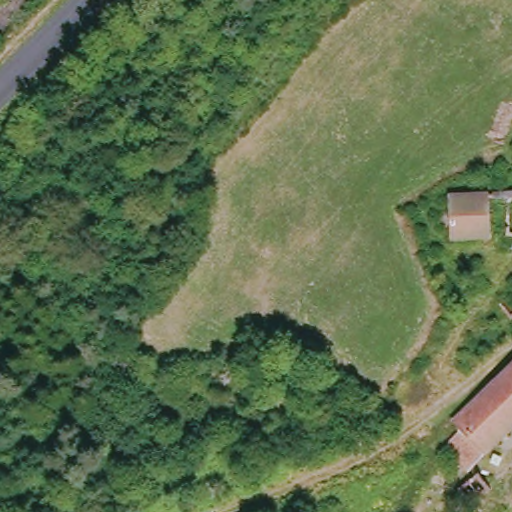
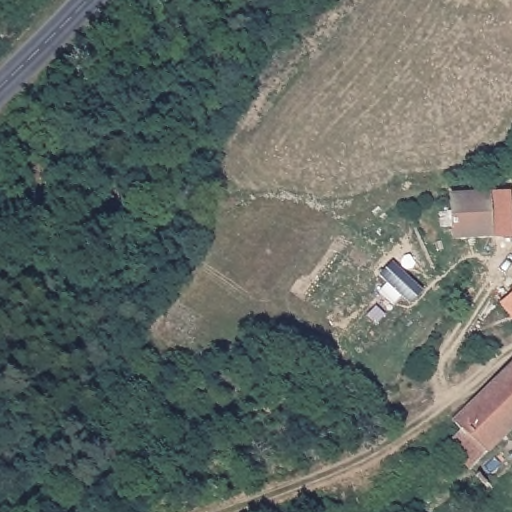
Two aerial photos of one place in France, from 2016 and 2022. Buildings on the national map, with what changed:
unchanged [(491,239),(448,240),(449,228),(436,229),(437,213),(447,211),(447,199),(490,198),(491,239)]
unchanged [(457,433),(448,424),(512,360),(512,424),(479,455),(461,469),(442,447),(457,433)]
unchanged [(454,493),(491,459),(499,469),(481,486),(486,491),(465,506),(454,493)]

